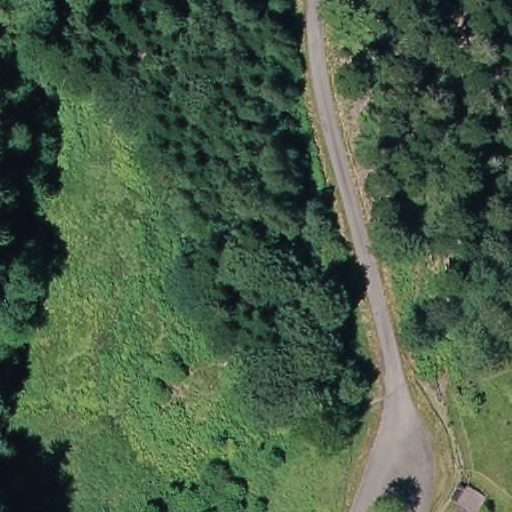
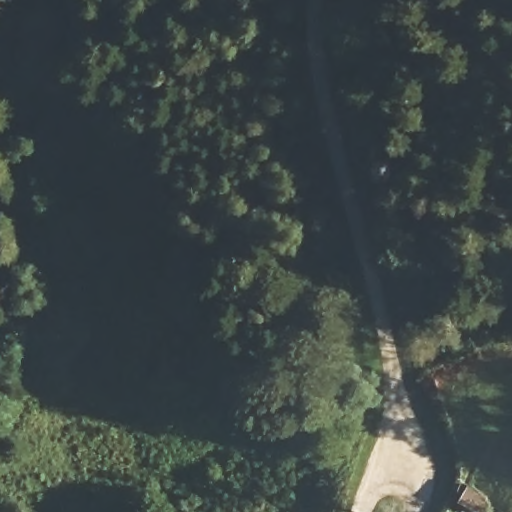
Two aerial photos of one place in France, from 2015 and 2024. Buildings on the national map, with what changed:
unchanged [(458,512),(447,505),(459,483),(486,501),(480,512),(458,512)]

